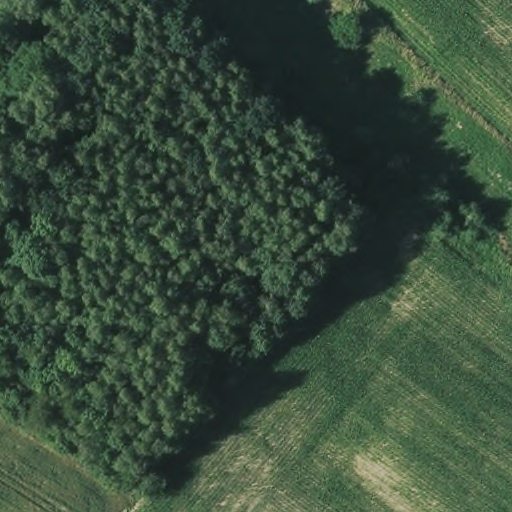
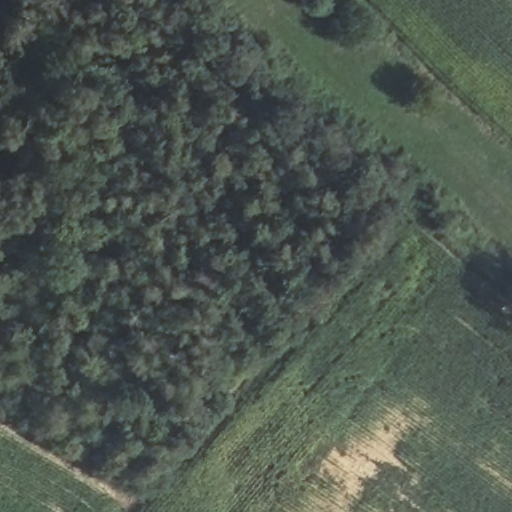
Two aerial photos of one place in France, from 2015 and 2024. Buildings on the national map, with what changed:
[]

